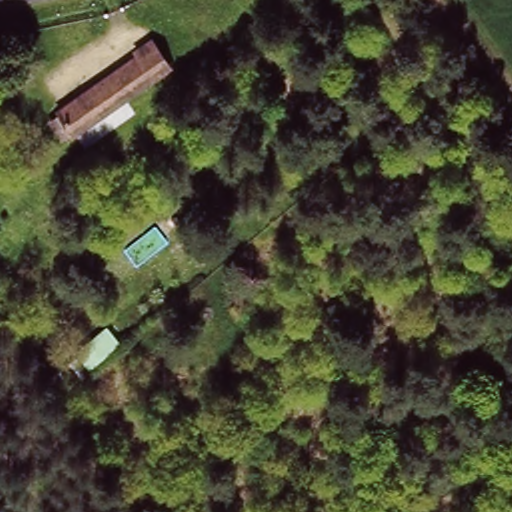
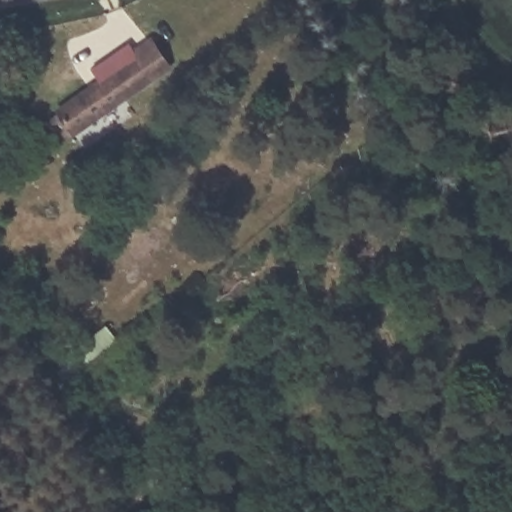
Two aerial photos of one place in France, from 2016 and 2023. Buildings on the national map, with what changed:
unchanged [(140,94),(67,134),(50,105),(133,61),(127,53),(158,36),(182,72),(167,80),(140,94)]

